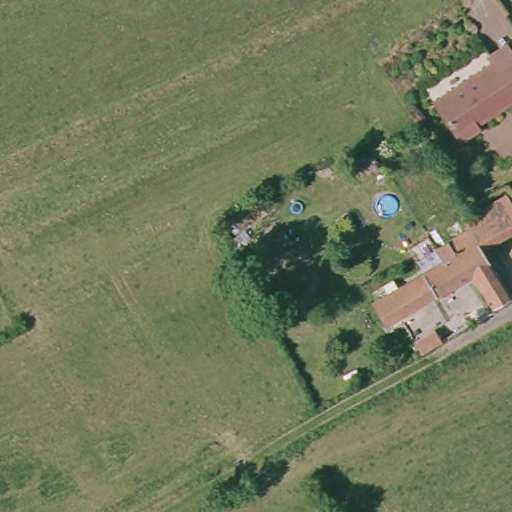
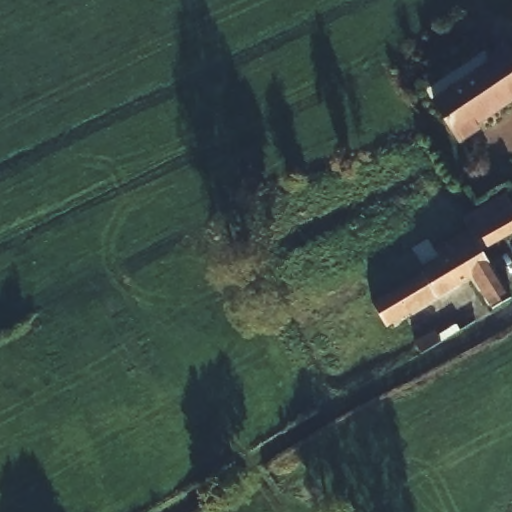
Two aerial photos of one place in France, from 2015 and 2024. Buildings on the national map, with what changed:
unchanged [(494,52),(510,41),(512,45),(512,97),(477,121),(480,127),(464,138),(436,98),(497,61),(494,52)]
unchanged [(476,239),(463,217),(468,210),(505,192),(512,206),(512,229),(481,247),(476,239)]
unchanged [(471,274),(384,324),(371,303),(440,263),(433,247),(462,231),(470,242),(476,239),(481,247),(510,297),(492,308),(471,274)]
unchanged [(418,357),(413,344),(433,333),(440,345),(418,357)]

